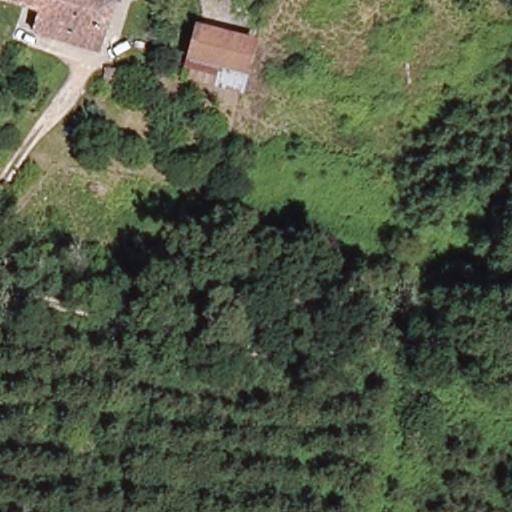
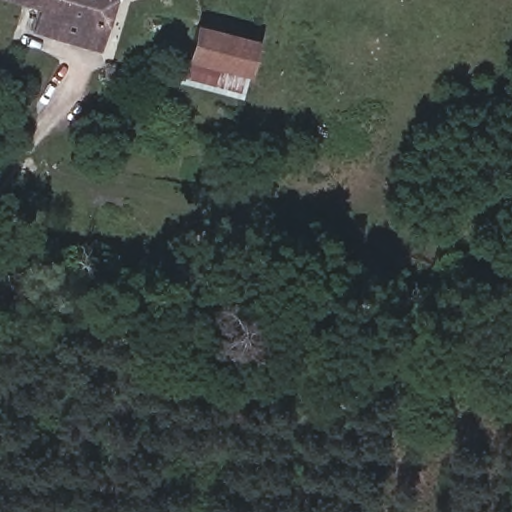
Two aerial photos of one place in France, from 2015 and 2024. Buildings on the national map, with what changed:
unchanged [(43,6),(20,0),(118,0),(102,57),(34,36),(43,6)]
unchanged [(191,35),(244,45),(250,46),(242,80),(221,75),(185,69),(191,35)]
unchanged [(103,86),(97,108),(83,105),(89,83),(103,86)]

